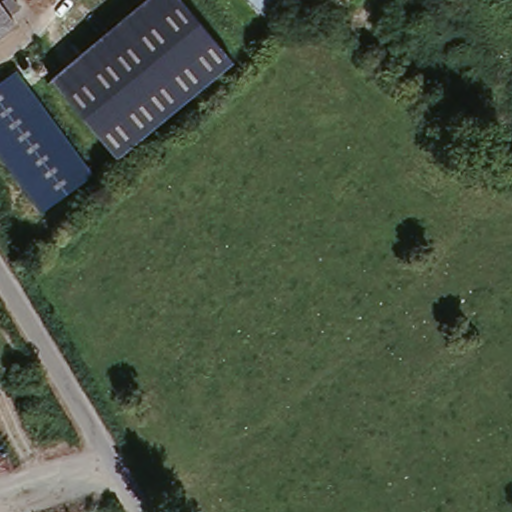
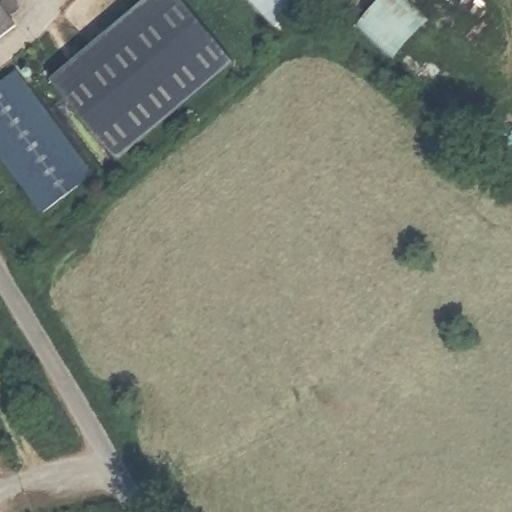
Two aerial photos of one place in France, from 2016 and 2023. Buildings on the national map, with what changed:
unchanged [(17,21),(0,32),(0,0),(2,0),(17,21)]
unchanged [(55,87),(154,0),(174,0),(231,66),(120,162),(55,87)]
unchanged [(285,31),(252,0),(316,0),(285,31)]
new [(384,0),(406,0),(431,23),(392,62),(359,27),(384,0)]
unchanged [(15,73),(94,175),(41,216),(0,158),(0,84),(15,73)]
unchanged [(78,244),(92,260),(72,276),(59,260),(78,244)]

